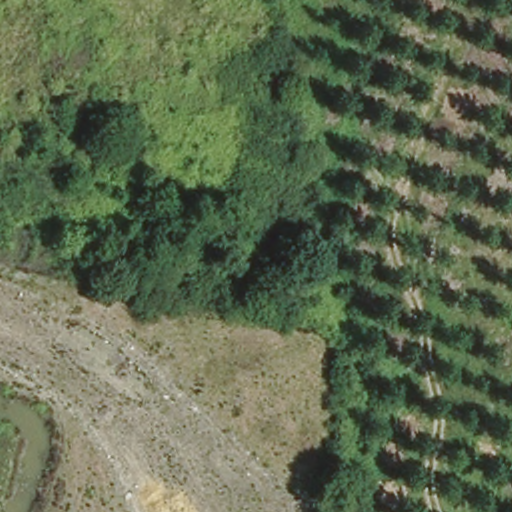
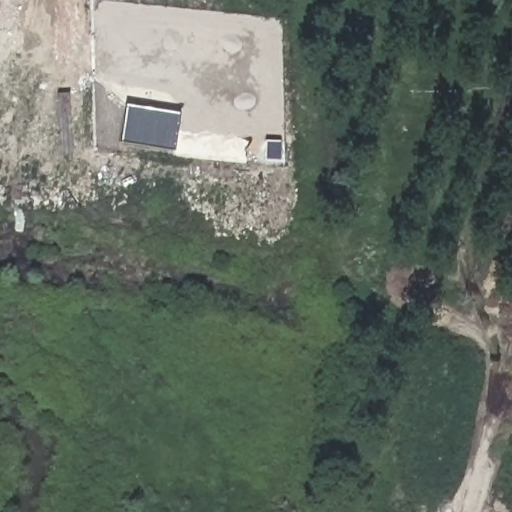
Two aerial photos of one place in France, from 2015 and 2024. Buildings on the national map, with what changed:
new [(180,112),(174,151),(122,142),(128,104),(180,112)]

